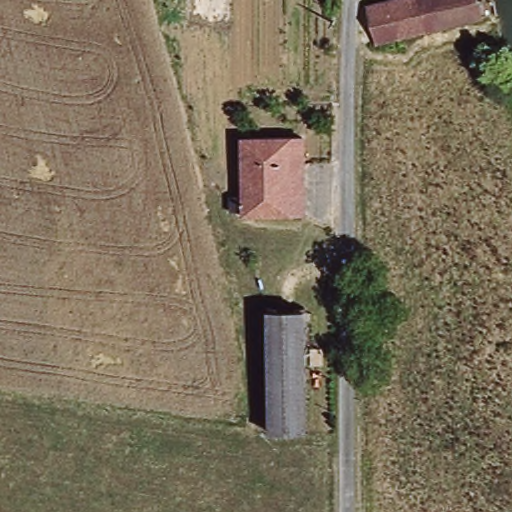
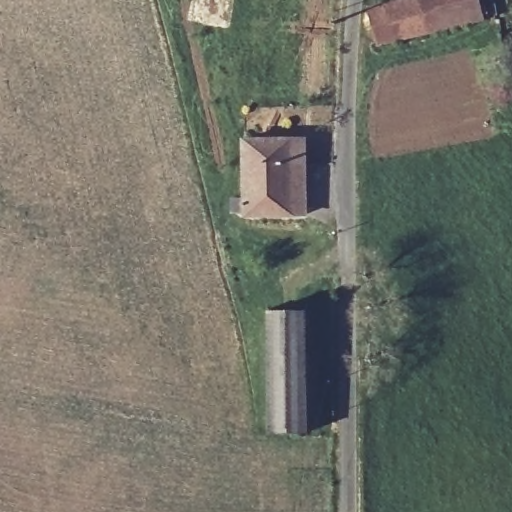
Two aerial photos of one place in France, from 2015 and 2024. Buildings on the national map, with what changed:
unchanged [(409,0),(417,26),(373,39),(364,3),(379,0),(409,0)]
unchanged [(421,30),(418,31),(417,26),(409,0),(487,0),(492,17),(421,30)]
unchanged [(250,136),(308,137),(307,212),(239,211),(240,191),(249,191),(250,136)]
unchanged [(305,427),(268,428),(269,310),(306,310),(305,427)]

